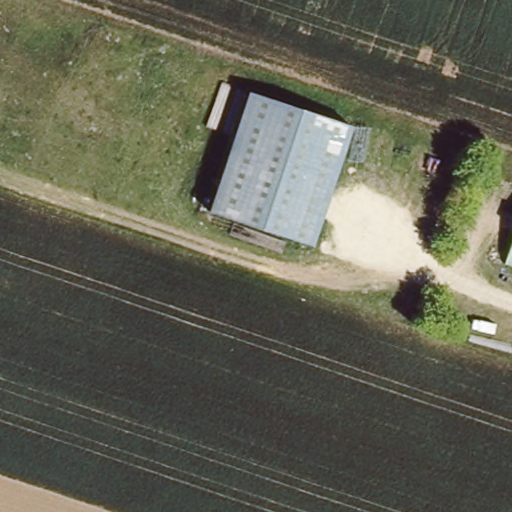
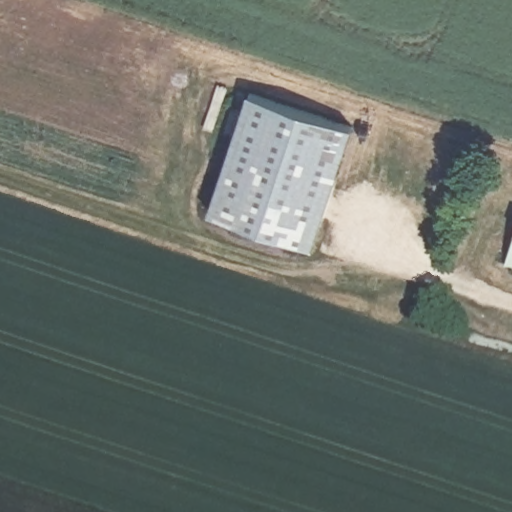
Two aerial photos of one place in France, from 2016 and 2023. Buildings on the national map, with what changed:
unchanged [(353,144),(318,245),(186,200),(220,99),(353,144)]
unchanged [(505,260),(512,242),(512,263),(505,260)]

